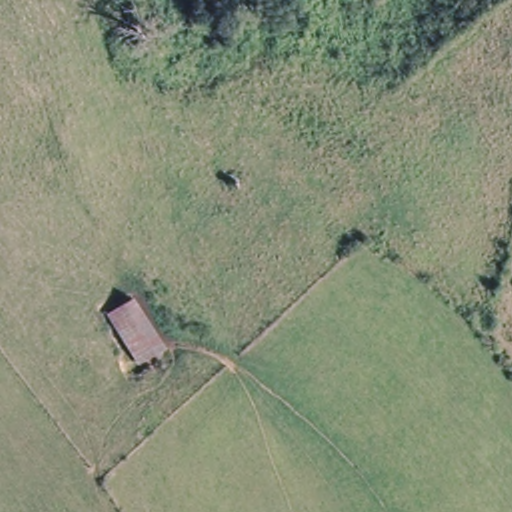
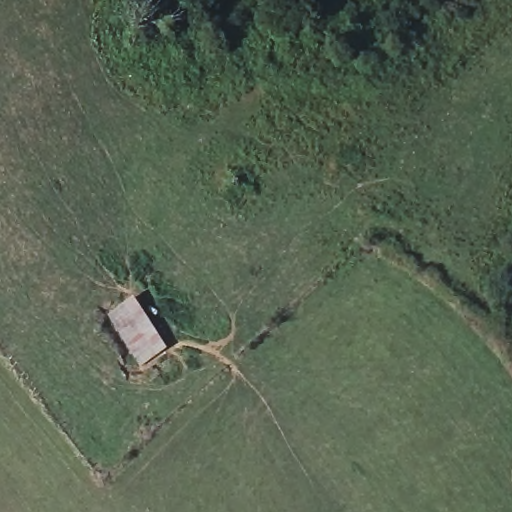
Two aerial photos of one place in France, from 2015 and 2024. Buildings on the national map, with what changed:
unchanged [(102,317),(135,297),(169,345),(138,362),(102,317)]

